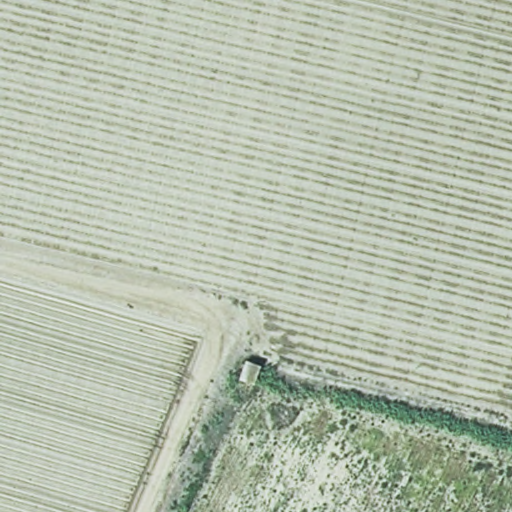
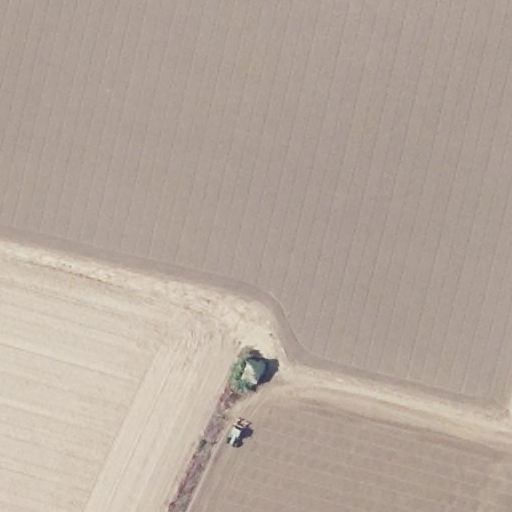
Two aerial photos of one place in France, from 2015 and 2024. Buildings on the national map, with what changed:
unchanged [(264,371),(257,383),(244,378),(250,368),(264,371)]

